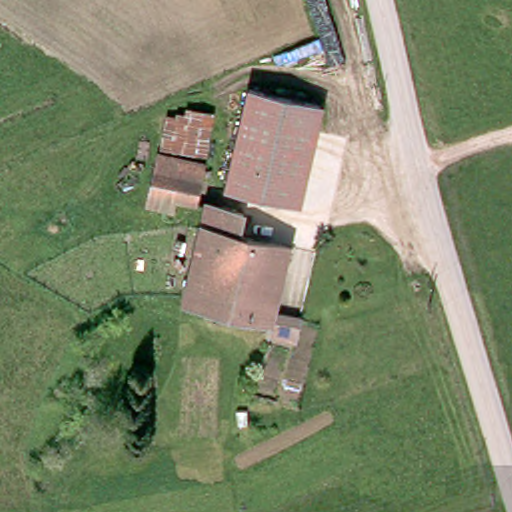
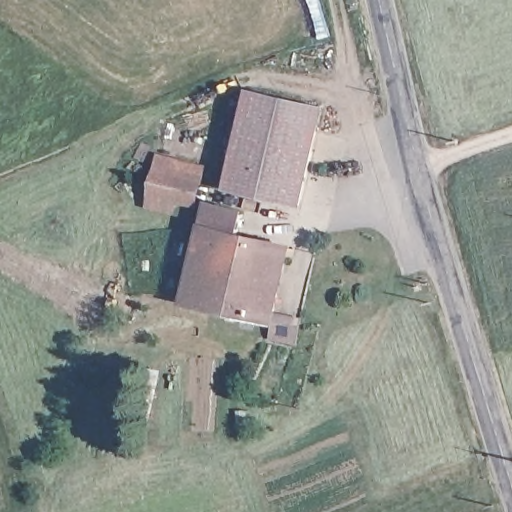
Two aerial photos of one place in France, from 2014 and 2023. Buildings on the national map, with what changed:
unchanged [(251,94),(323,111),(318,130),(245,114),(251,94)]
unchanged [(318,130),(300,209),(230,193),(245,114),(318,130)]
unchanged [(145,206),(162,119),(211,130),(195,211),(145,206)]
unchanged [(272,318),(187,304),(205,230),(211,209),(226,212),(249,216),(248,222),(245,240),(287,249),(272,318)]
unchanged [(296,348),(273,342),(278,315),(300,320),(296,348)]

